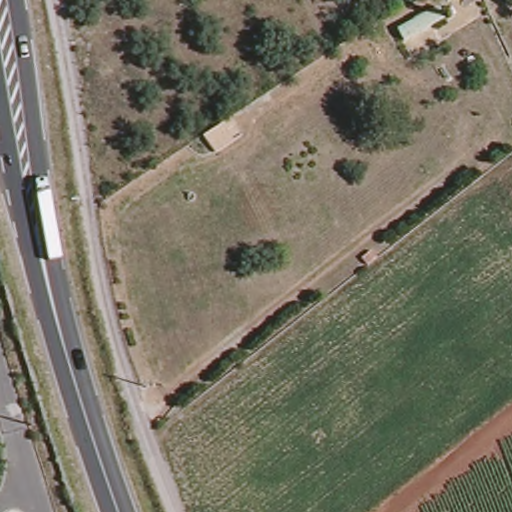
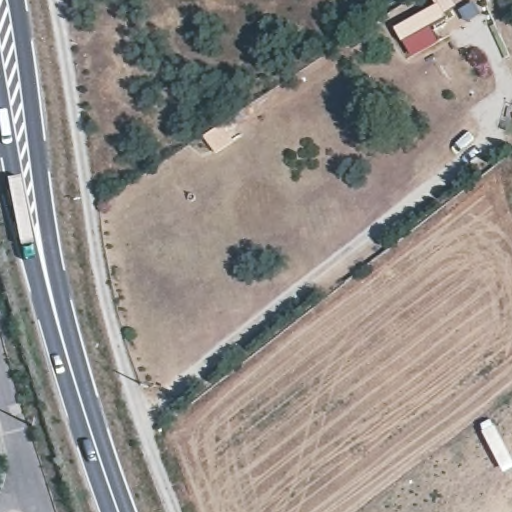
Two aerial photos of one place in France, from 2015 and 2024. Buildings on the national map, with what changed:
unchanged [(447,0),(451,0),(448,1),(447,0)]

